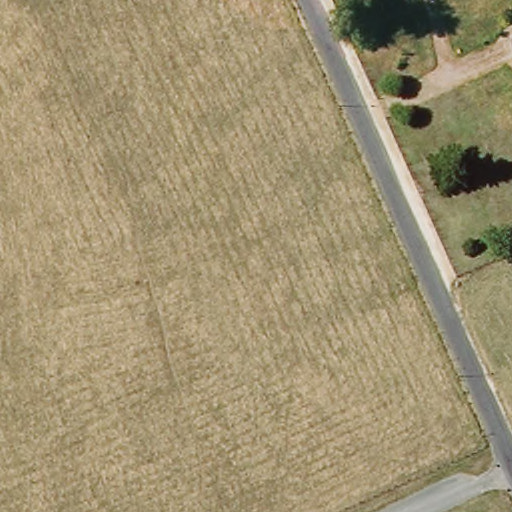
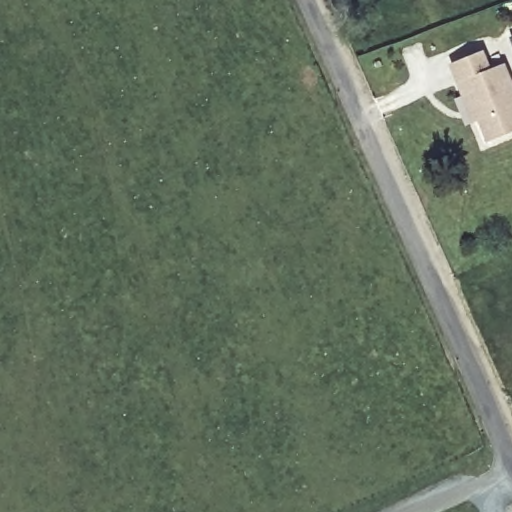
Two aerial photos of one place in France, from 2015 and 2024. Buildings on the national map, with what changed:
unchanged [(512,40),(512,50),(508,41),(512,40)]
new [(492,68),(507,62),(512,76),(512,132),(488,142),(480,121),(475,123),(450,63),(485,49),(492,68)]

